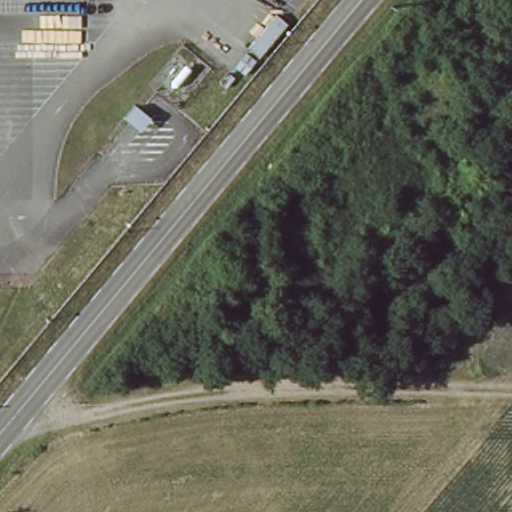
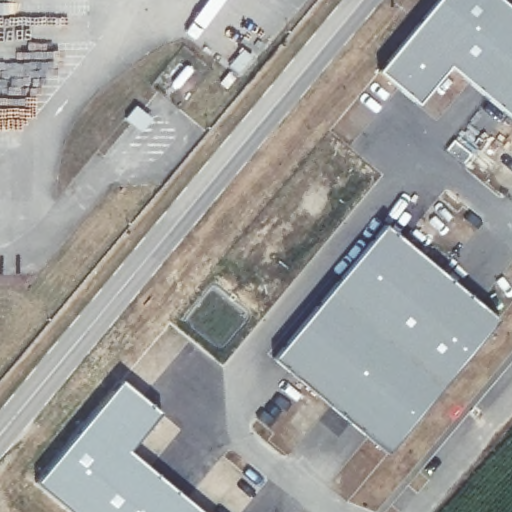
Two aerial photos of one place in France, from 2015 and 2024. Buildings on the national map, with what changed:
new [(436,0),(504,0),(512,6),(512,121),(450,69),(418,106),(377,71),(436,0)]
demolished [(270,11),(290,21),(263,55),(243,42),(270,11)]
new [(385,223),(457,281),(500,319),(386,455),(270,359),(385,223)]
new [(161,412),(130,450),(204,512),(69,512),(35,483),(120,380),(161,412)]

